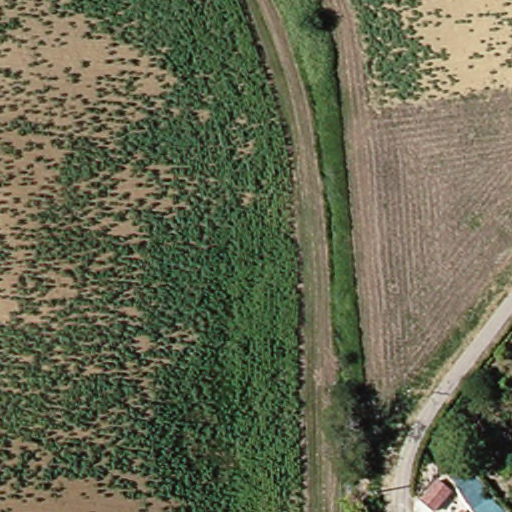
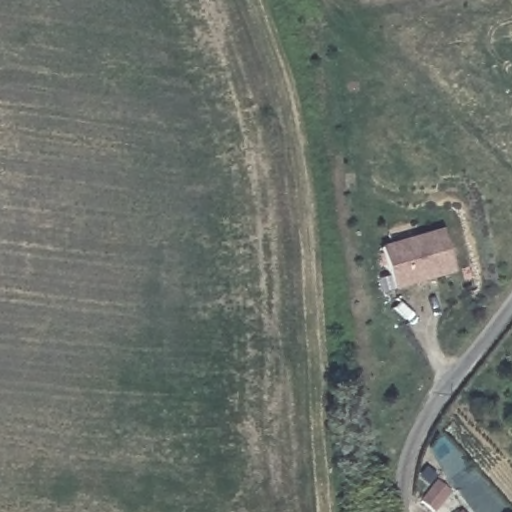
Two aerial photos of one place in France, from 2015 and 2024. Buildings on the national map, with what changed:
new [(446,227),(458,271),(394,291),(381,247),(446,227)]

